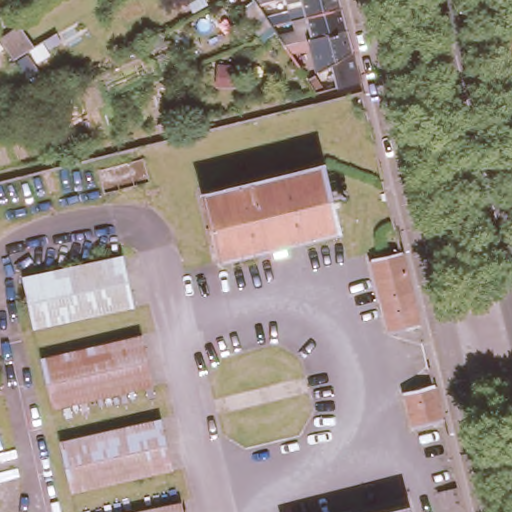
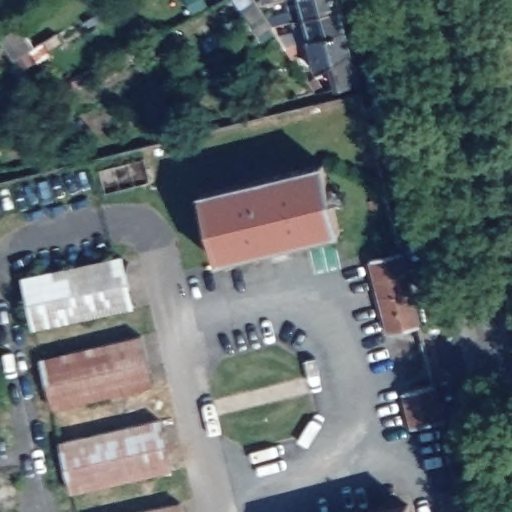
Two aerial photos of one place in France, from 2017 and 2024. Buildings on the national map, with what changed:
unchanged [(270,20),(257,0),(274,0),(278,17),(270,20)]
unchanged [(289,15),(292,14),(289,0),(340,0),(340,1),(347,24),(352,45),(360,75),(335,81),(330,59),(317,67),(310,41),(303,44),(297,45),(289,47),(285,40),(277,30),(292,25),(289,15)]
unchanged [(10,29),(19,24),(35,47),(26,52),(14,60),(0,39),(0,36),(10,29)]
unchanged [(340,226),(219,256),(202,187),(324,157),(340,226)]
unchanged [(371,252),(402,245),(420,319),(389,326),(385,327),(367,254),(371,252)]
unchanged [(36,326),(24,274),(121,252),(132,302),(36,326)]
unchanged [(54,406),(42,356),(139,332),(150,382),(54,406)]
unchanged [(435,378),(444,415),(412,421),(409,422),(400,386),(404,385),(435,378)]
unchanged [(75,485),(62,435),(159,411),(171,462),(75,485)]
unchanged [(179,495),(182,512),(102,512),(179,495)]
unchanged [(410,512),(357,512),(407,500),(410,512)]

